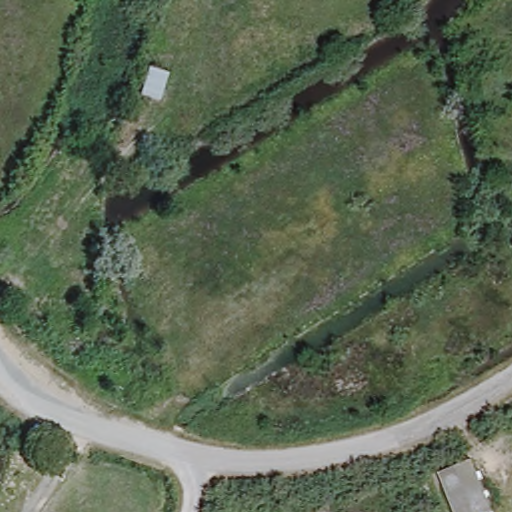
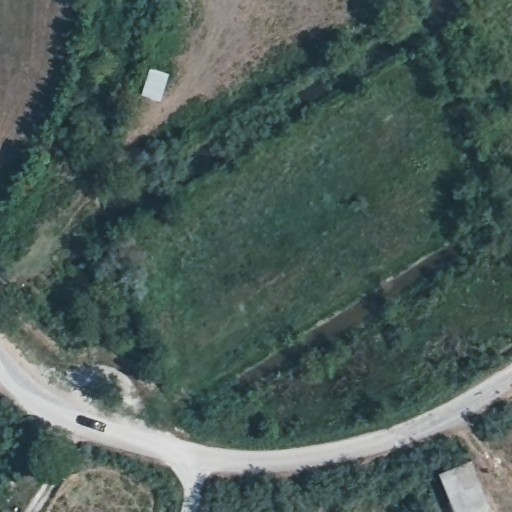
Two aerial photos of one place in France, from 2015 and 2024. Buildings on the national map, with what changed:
unchanged [(174,72),(166,101),(138,94),(149,67),(174,72)]
unchanged [(440,472),(470,460),(492,510),(487,512),(455,512),(440,472)]

